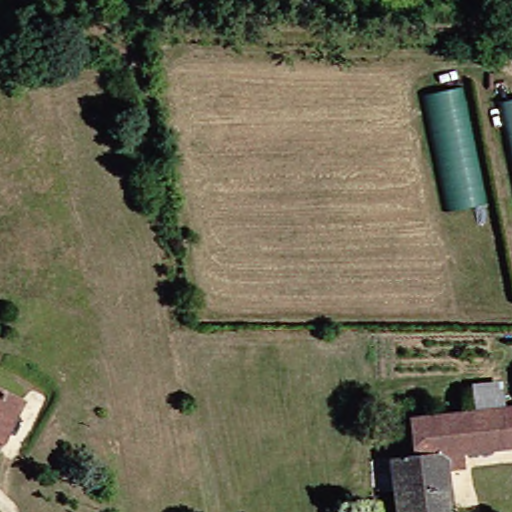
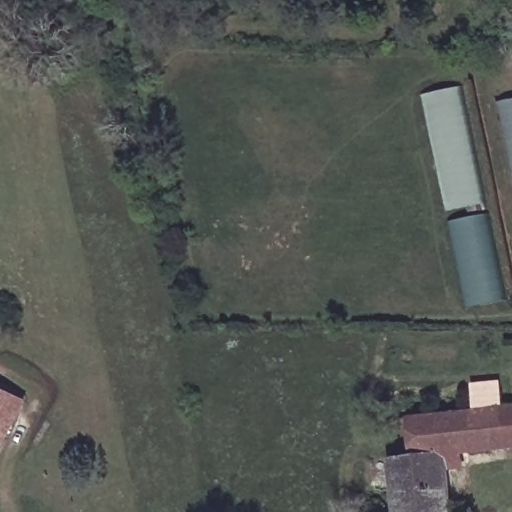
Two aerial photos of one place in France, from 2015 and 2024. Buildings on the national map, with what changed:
unchanged [(482,205),(445,213),(423,97),(460,90),(482,205)]
unchanged [(512,100),(512,185),(495,103),(512,100)]
new [(488,214),(504,300),(469,308),(452,221),(488,214)]
unchanged [(0,443),(0,393),(22,403),(8,432),(2,444),(0,443)]
unchanged [(440,512),(388,512),(384,455),(412,452),(412,417),(512,406),(512,447),(437,455),(440,512)]

